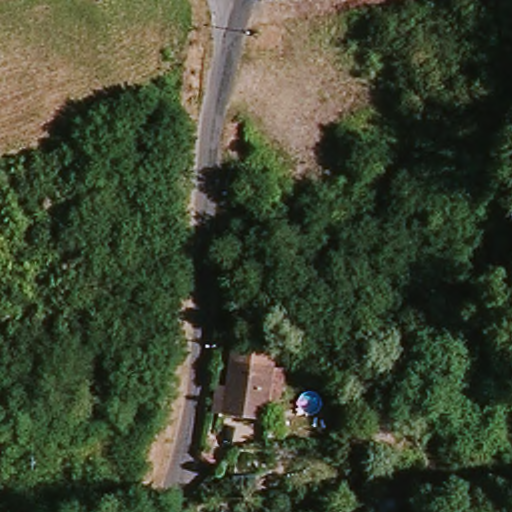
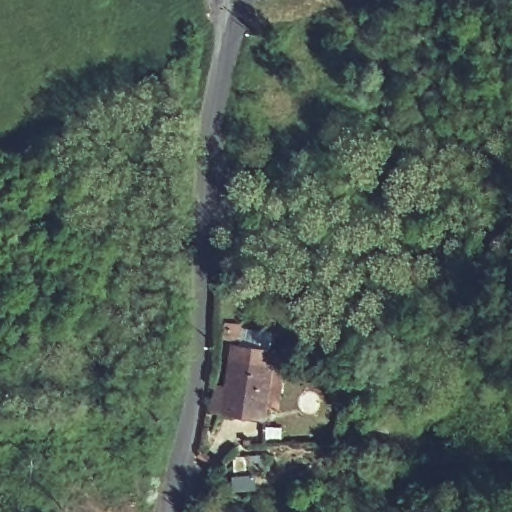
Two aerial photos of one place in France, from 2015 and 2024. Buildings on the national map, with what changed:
unchanged [(264,422),(224,416),(233,362),(273,368),(264,422)]

